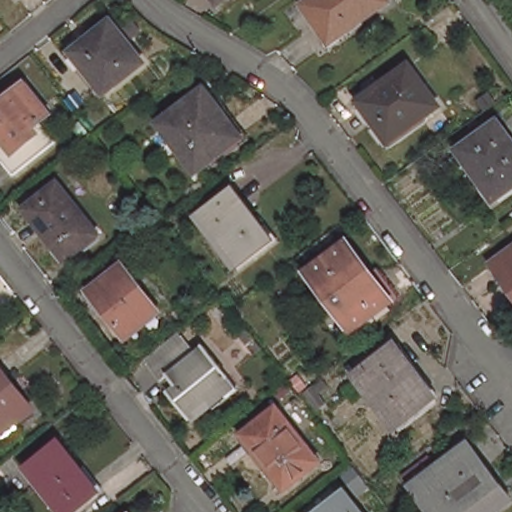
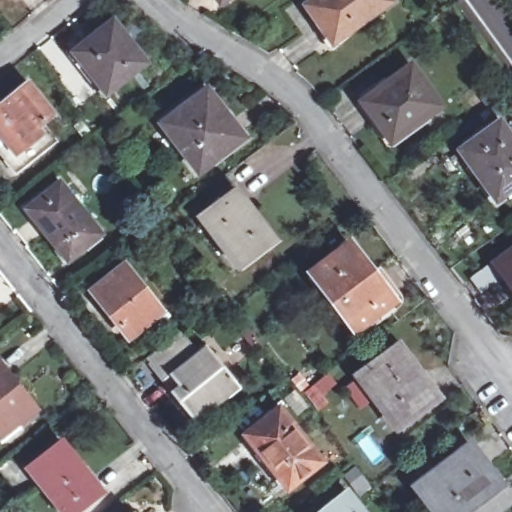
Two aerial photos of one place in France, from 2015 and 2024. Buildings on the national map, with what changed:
unchanged [(384,0),(387,4),(335,40),(322,21),(317,25),(303,6),(312,0),(384,0)]
unchanged [(113,19),(145,59),(110,87),(96,70),(92,73),(75,49),(113,19)]
unchanged [(392,139),(363,100),(412,64),(440,103),(392,139)]
unchanged [(3,127),(0,123),(0,98),(27,76),(52,107),(43,115),(57,134),(17,166),(6,152),(0,145),(0,130),(3,127)]
unchanged [(221,118),(238,140),(200,169),(182,146),(187,142),(168,118),(207,88),(227,114),(221,118)]
unchanged [(498,197),(462,148),(501,121),(512,136),(512,187),(498,197)]
unchanged [(67,257),(28,210),(62,183),(100,232),(67,257)]
unchanged [(235,188),(263,224),(257,228),(267,242),(238,264),(200,214),(235,188)]
unchanged [(355,325),(312,270),(350,241),(393,297),(355,325)]
unchanged [(512,249),(512,284),(495,261),(512,249)]
unchanged [(124,264),(158,307),(145,316),(148,320),(128,335),(92,289),(124,264)]
unchanged [(173,387),(178,382),(170,372),(205,344),(237,383),(196,417),(173,387)]
unchanged [(398,424),(360,374),(398,346),(437,396),(398,424)]
unchanged [(0,429),(0,424),(0,365),(29,402),(12,415),(18,425),(5,435),(0,429)]
unchanged [(262,456),(265,453),(248,431),(282,405),(322,458),(287,487),(262,456)]
unchanged [(76,512),(66,512),(28,464),(62,439),(103,491),(76,512)]
unchanged [(477,451),(511,496),(491,512),(436,512),(422,493),(477,451)]
unchanged [(343,491),(328,479),(352,460),(366,479),(352,490),(369,512),(311,512),(343,491)]

